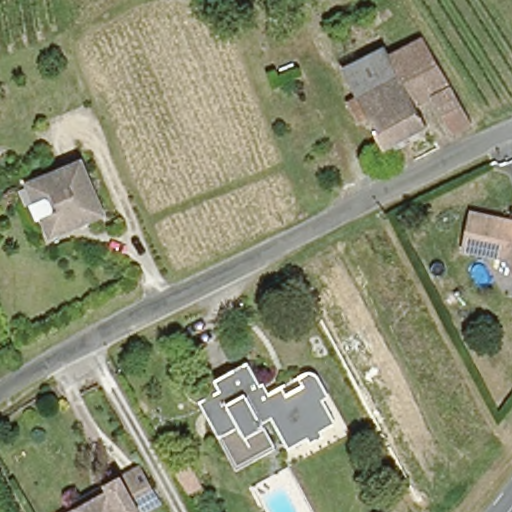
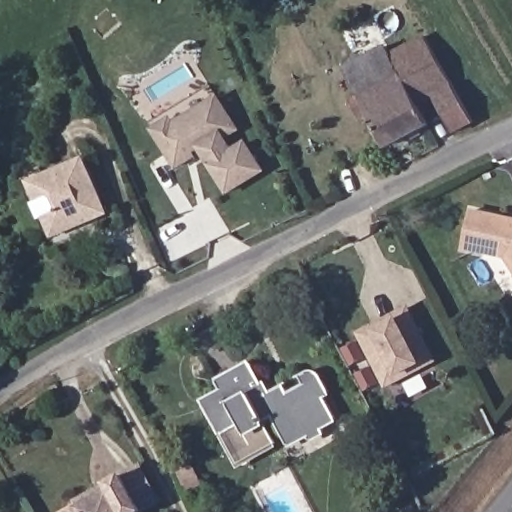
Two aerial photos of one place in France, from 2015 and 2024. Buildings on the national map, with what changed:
unchanged [(450,127),(432,91),(415,100),(424,120),(383,142),(367,111),(357,115),(348,96),(355,91),(398,68),(392,54),(389,49),(394,46),(421,32),(450,82),(470,117),(450,127)]
unchanged [(389,49),(392,54),(398,68),(355,91),(341,64),(382,42),(384,46),(391,41),(394,46),(389,49)]
new [(227,139),(233,147),(247,140),(266,172),(226,195),(201,155),(176,170),(150,130),(171,116),(174,121),(218,95),(240,131),(227,139)]
unchanged [(44,220),(39,223),(31,205),(37,202),(29,185),(84,161),(106,215),(52,238),(44,220)]
unchanged [(505,221),(510,227),(512,228),(512,272),(503,260),(460,251),(468,215),(505,221)]
new [(357,333),(410,305),(439,362),(386,390),(357,333)]
unchanged [(231,454),(207,408),(201,397),(217,389),(213,381),(249,362),(265,391),(281,383),(286,391),(305,381),(300,373),(306,370),(318,375),(326,392),(321,395),(333,418),(318,426),(321,431),(305,439),(302,435),(283,445),(268,418),(261,422),(272,445),(253,455),(236,463),(231,454)]
unchanged [(87,493),(90,491),(96,487),(102,484),(117,475),(134,464),(156,499),(139,510),(140,512),(57,512),(73,501),(87,493)]

